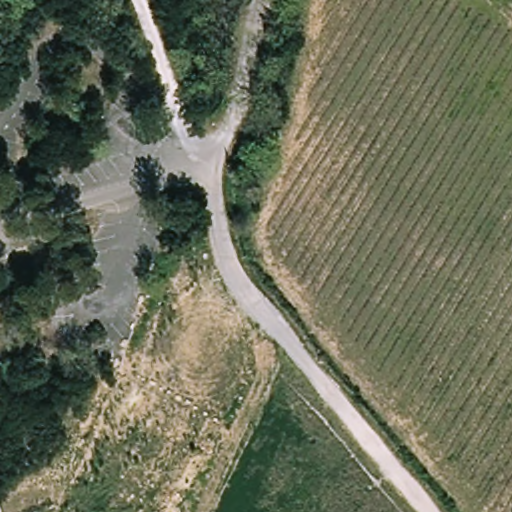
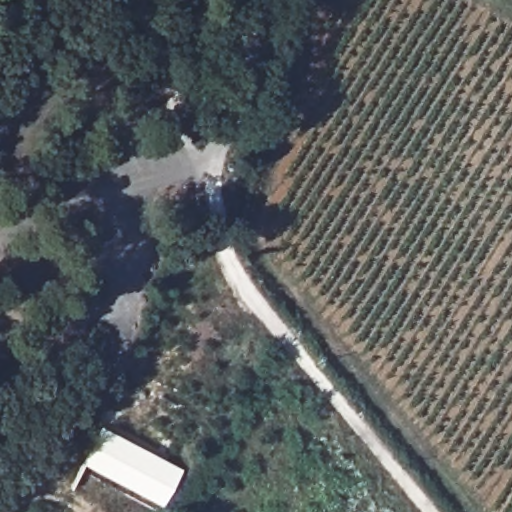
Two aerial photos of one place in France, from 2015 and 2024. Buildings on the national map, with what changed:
new [(81,464),(101,424),(181,468),(162,504),(81,464)]

